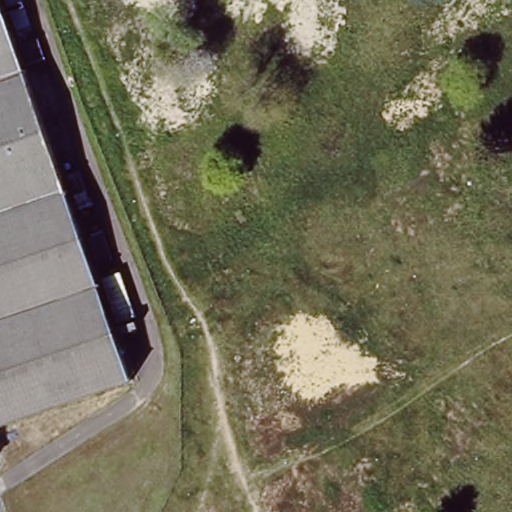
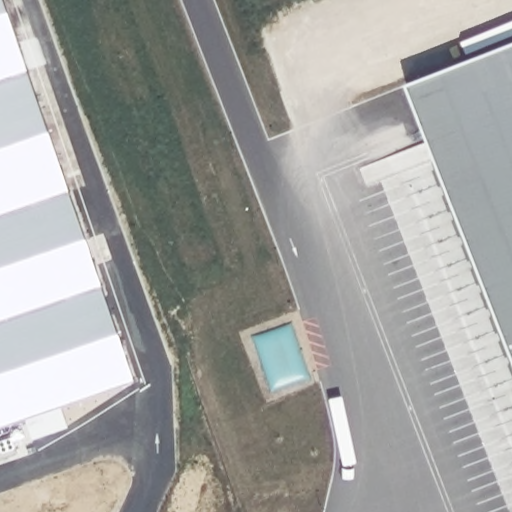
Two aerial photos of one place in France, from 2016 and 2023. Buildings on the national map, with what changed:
unchanged [(125,377),(0,424),(0,5),(125,377)]
new [(512,48),(512,341),(413,87),(512,48)]

